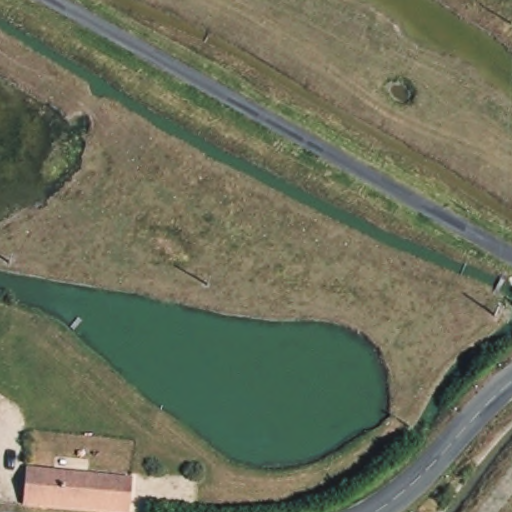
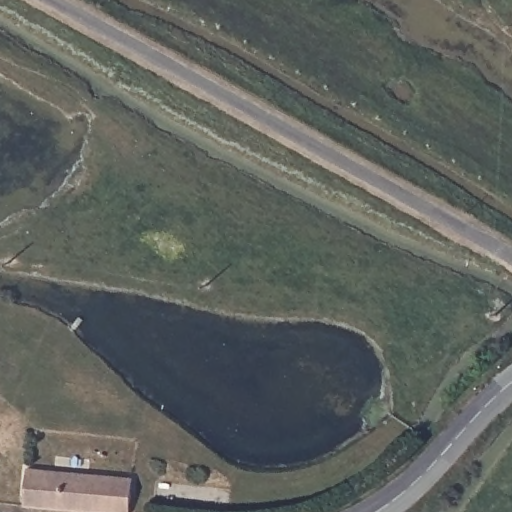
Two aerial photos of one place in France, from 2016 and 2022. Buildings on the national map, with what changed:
unchanged [(128,512),(83,512),(42,507),(14,504),(20,470),(132,482),(128,512)]

